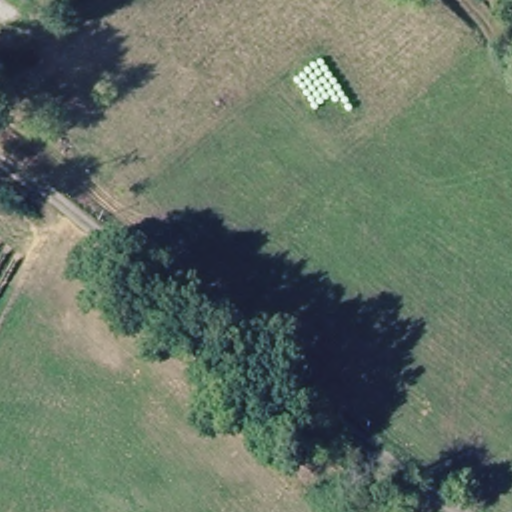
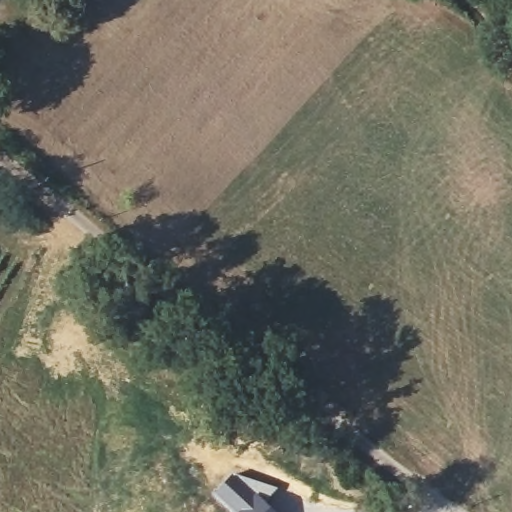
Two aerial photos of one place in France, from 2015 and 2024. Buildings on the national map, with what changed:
new [(214,493),(234,471),(249,478),(278,488),(268,502),(279,512),(234,512),(214,493)]

